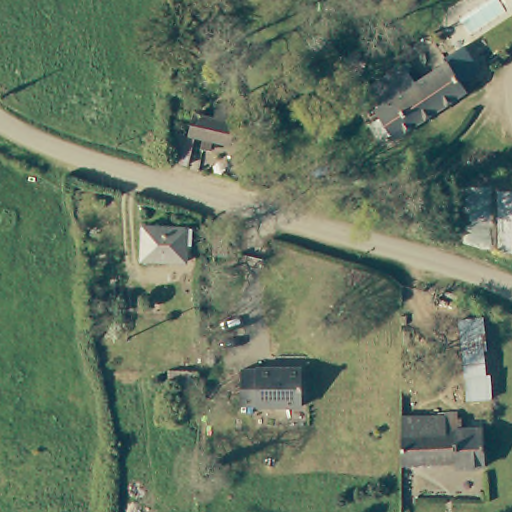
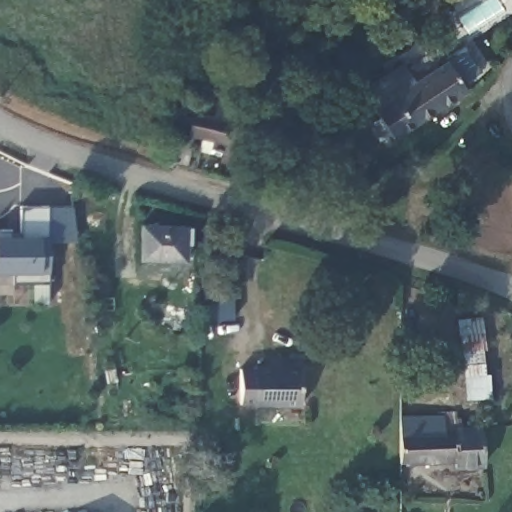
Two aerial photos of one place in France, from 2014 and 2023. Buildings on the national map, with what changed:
unchanged [(391,146),(388,141),(381,146),(374,135),(380,131),(370,111),(378,107),(371,92),(408,70),(418,87),(424,82),(417,66),(441,51),(468,95),(391,146)]
unchanged [(195,107),(236,114),(232,139),(191,132),(195,107)]
new [(13,283),(13,273),(0,274),(0,236),(23,236),(23,207),(49,207),(48,285),(13,283)]
unchanged [(193,260),(186,260),(141,259),(142,225),(188,227),(187,237),(193,237),(193,260)]
unchanged [(480,310),(491,395),(463,398),(452,313),(480,310)]
unchanged [(238,367),(301,362),(302,402),(241,406),(238,367)]
unchanged [(456,412),(457,427),(444,427),(443,418),(442,413),(456,412)]
unchanged [(400,465),(401,415),(420,413),(419,431),(414,431),(413,444),(431,445),(430,457),(448,457),(448,463),(400,465)]
unchanged [(448,467),(448,457),(430,457),(431,445),(413,444),(414,431),(419,431),(420,413),(442,413),(444,427),(480,427),(485,466),(448,467)]

